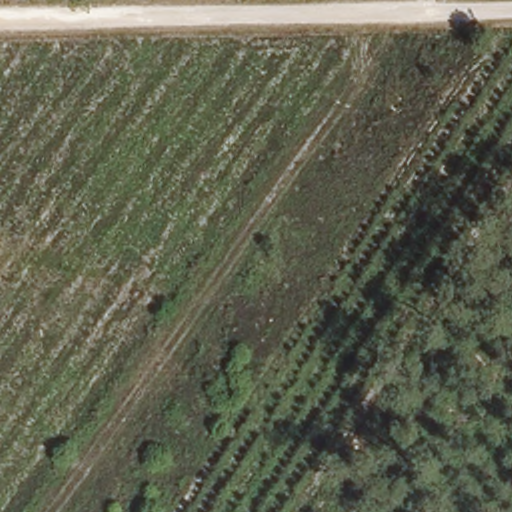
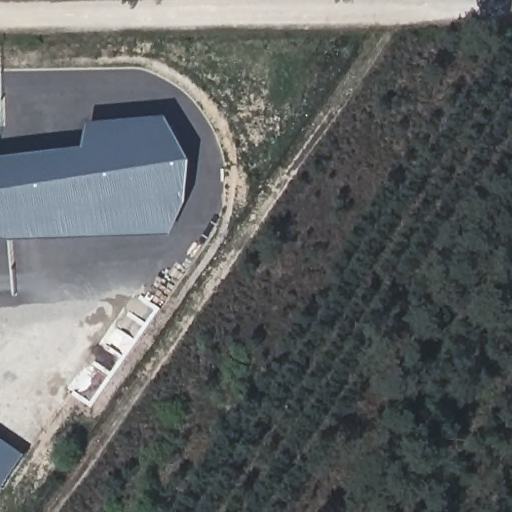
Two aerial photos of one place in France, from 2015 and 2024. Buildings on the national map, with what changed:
new [(81,145),(86,122),(164,117),(188,160),(185,203),(171,234),(6,239),(0,237),(0,154),(81,145)]
new [(23,458),(2,491),(0,489),(0,442),(23,458)]

